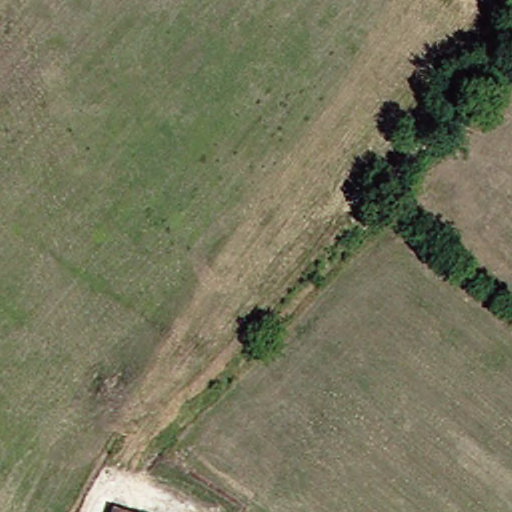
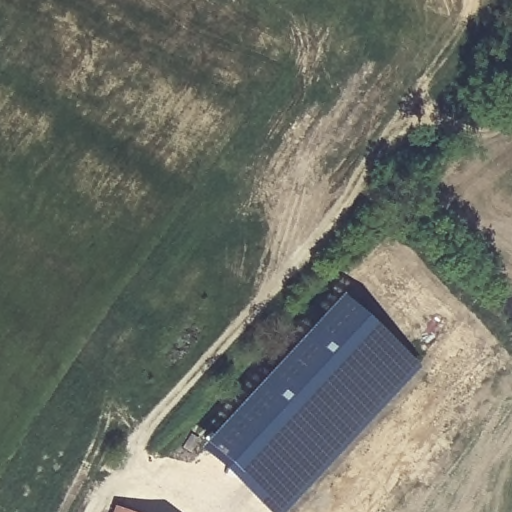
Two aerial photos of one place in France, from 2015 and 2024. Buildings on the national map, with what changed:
new [(280,512),(262,512),(194,447),(335,294),(413,365),(280,512)]
unchanged [(142,512),(119,512),(122,504),(142,512)]

